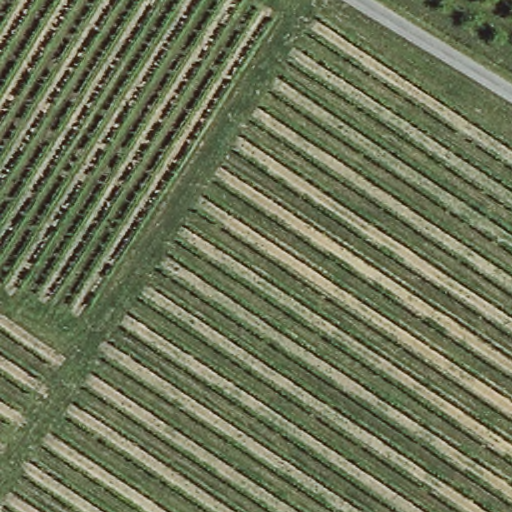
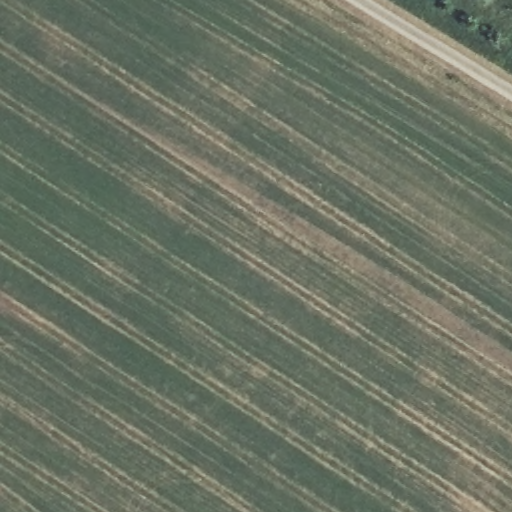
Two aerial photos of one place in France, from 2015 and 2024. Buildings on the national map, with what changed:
[]

